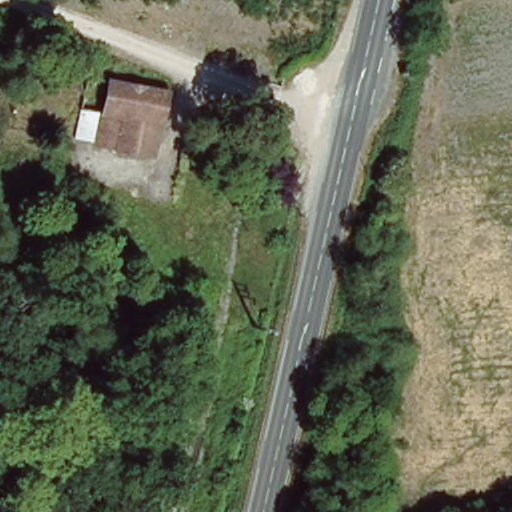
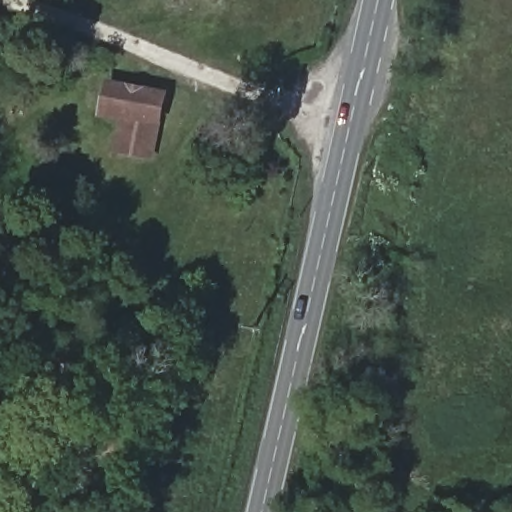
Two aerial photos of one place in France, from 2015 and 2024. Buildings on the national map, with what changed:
unchanged [(151,161),(83,144),(90,115),(80,113),(87,82),(109,86),(109,84),(166,97),(151,161)]

